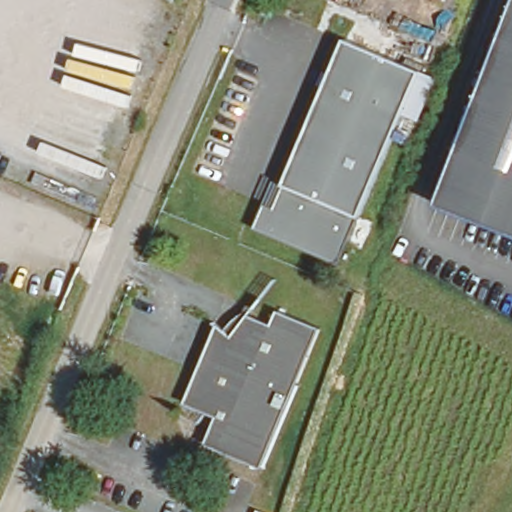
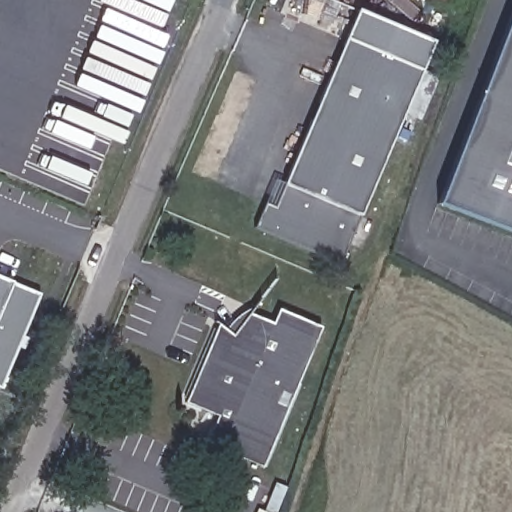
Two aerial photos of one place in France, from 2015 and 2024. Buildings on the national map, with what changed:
new [(346,38),(357,10),(433,42),(422,69),(346,38)]
unchanged [(512,19),(512,233),(439,206),(512,19)]
unchanged [(358,216),(338,261),(256,228),(276,178),(286,182),(346,38),(422,69),(440,76),(421,121),(403,113),(358,216)]
new [(0,385),(0,281),(38,296),(0,385)]
unchanged [(208,441),(216,414),(184,400),(214,321),(227,335),(254,312),(276,320),(281,306),(309,316),(320,320),(298,377),(265,462),(208,441)]
unchanged [(256,512),(258,508),(265,512),(256,512)]

